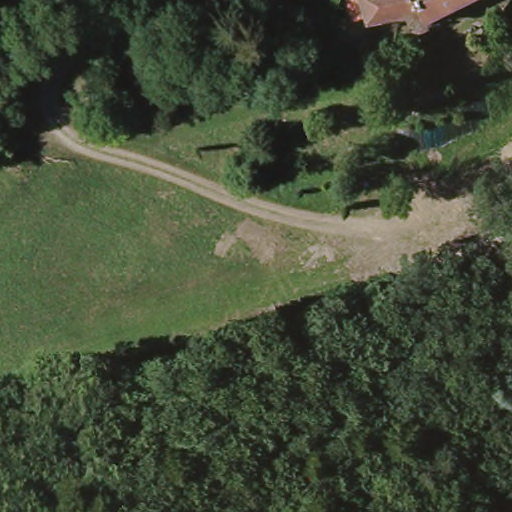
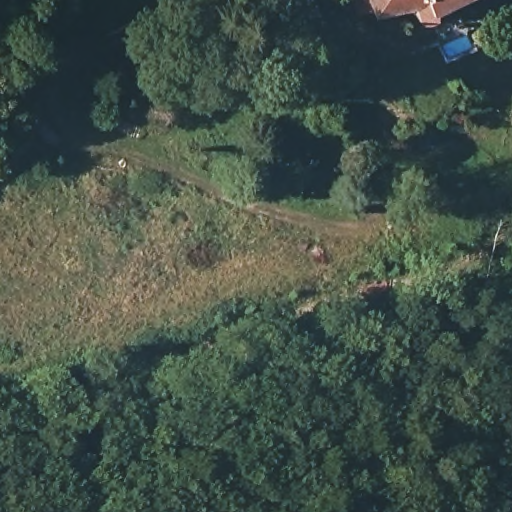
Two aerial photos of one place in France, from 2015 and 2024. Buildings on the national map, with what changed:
unchanged [(431,7),(435,21),(415,28),(406,8),(372,15),(368,0),(450,0),(431,7)]

